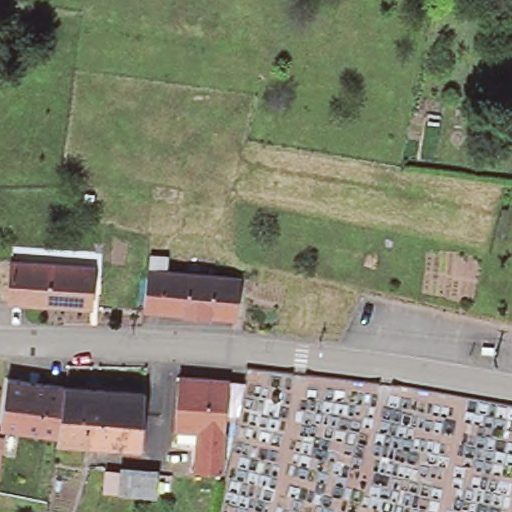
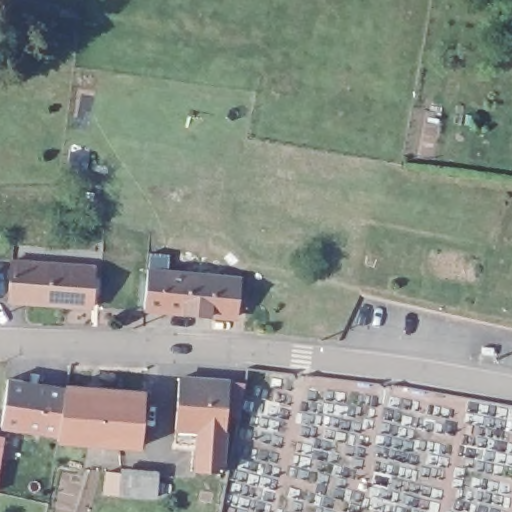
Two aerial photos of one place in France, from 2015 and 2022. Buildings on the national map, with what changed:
unchanged [(238,317),(147,305),(151,268),(153,252),(155,252),(170,254),(169,269),(241,278),(238,317)]
unchanged [(12,299),(15,259),(55,263),(53,302),(12,299)]
unchanged [(98,266),(95,305),(53,302),(55,263),(98,266)]
unchanged [(230,382),(228,433),(202,429),(178,426),(179,377),(230,382)]
unchanged [(65,387),(60,433),(2,424),(9,378),(65,387)]
unchanged [(146,397),(140,449),(59,439),(60,433),(65,387),(146,397)]
unchanged [(228,433),(227,473),(201,470),(202,429),(228,433)]
unchanged [(6,438),(0,478),(0,437),(6,438)]
unchanged [(104,496),(106,472),(122,472),(122,466),(159,469),(156,501),(104,496)]

